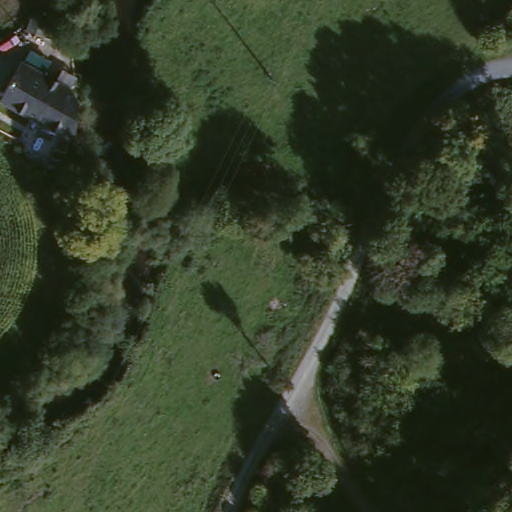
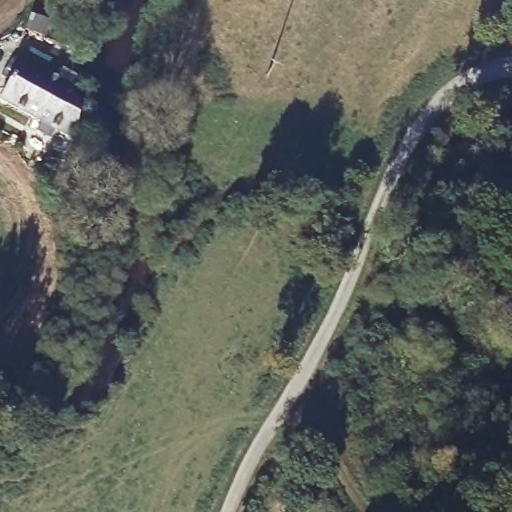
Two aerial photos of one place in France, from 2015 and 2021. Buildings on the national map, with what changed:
unchanged [(75,95),(72,140),(57,132),(1,99),(25,62),(75,95)]

